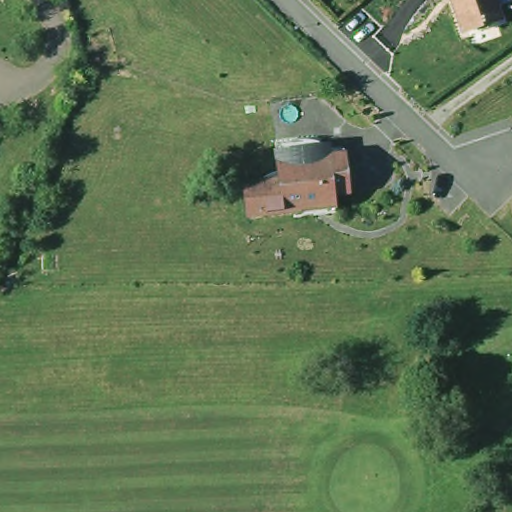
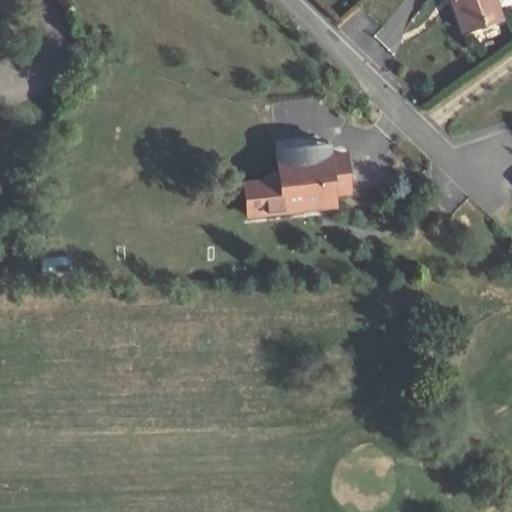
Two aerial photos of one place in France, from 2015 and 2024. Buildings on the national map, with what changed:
unchanged [(457,4),(455,0),(494,0),(502,24),(466,37),(455,4),(457,4)]
unchanged [(319,151),(320,163),(347,160),(350,198),(304,204),(305,215),(249,222),(245,190),(265,187),(281,182),(277,156),(319,151)]

